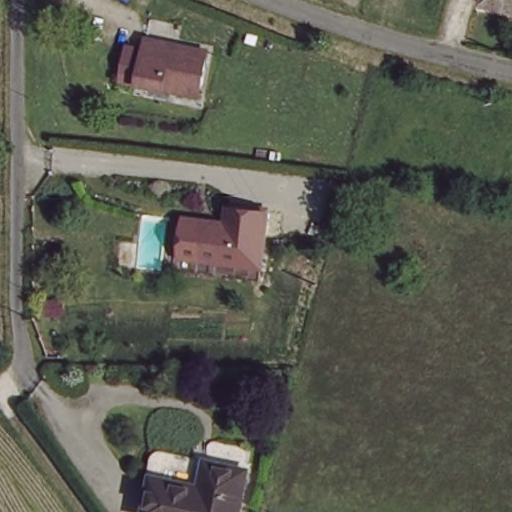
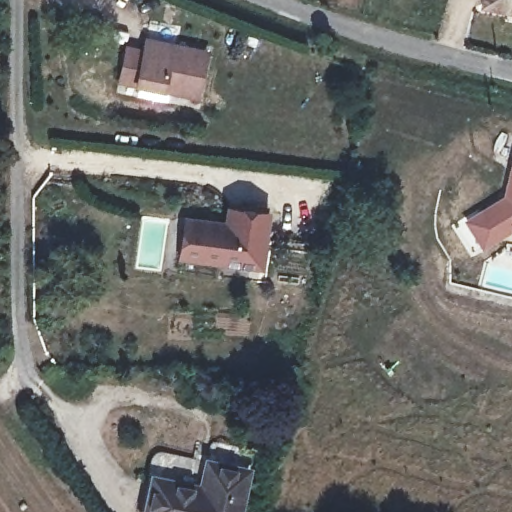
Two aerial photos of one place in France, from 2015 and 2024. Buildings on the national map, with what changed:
unchanged [(479,0),(512,0),(512,6),(479,0)]
unchanged [(135,91),(141,57),(158,61),(160,49),(187,54),(222,61),(213,107),(135,91)]
unchanged [(342,69),(334,68),(335,61),(343,62),(342,69)]
new [(511,229),(482,251),(464,221),(500,197),(512,155),(512,229),(511,229)]
unchanged [(272,205),(265,261),(185,252),(189,219),(190,220),(191,212),(232,217),(232,202),(272,205)]
unchanged [(207,468),(248,476),(242,512),(150,512),(155,485),(202,493),(207,468)]

